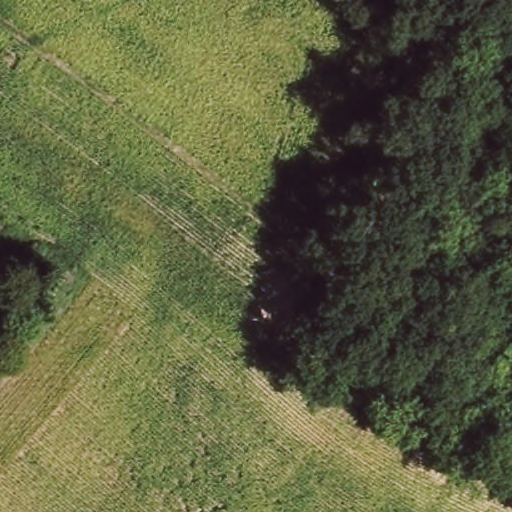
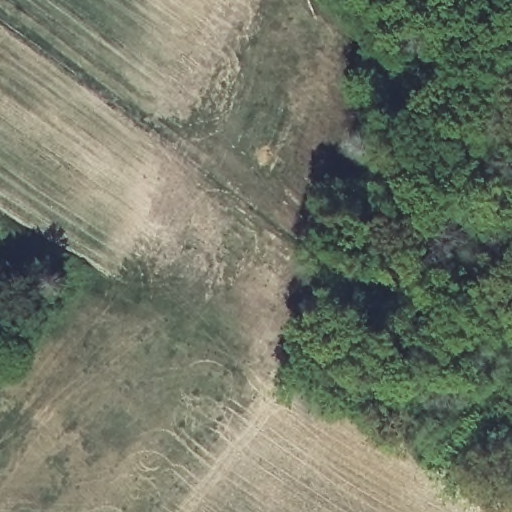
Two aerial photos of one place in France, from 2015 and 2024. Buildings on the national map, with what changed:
unchanged [(64,272),(54,287),(40,273),(50,261),(64,272)]

